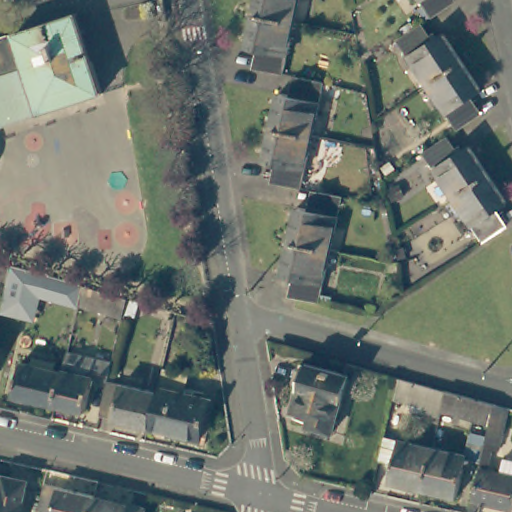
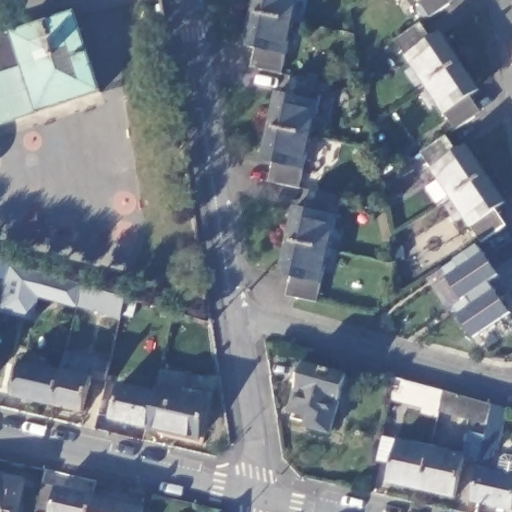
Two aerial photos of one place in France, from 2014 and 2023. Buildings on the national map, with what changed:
unchanged [(255,0),(297,0),(293,22),(253,13),(255,0)]
unchanged [(416,0),(445,0),(449,5),(428,19),(416,0)]
unchanged [(261,52),(246,49),(253,13),(293,22),(281,75),(258,70),(261,52)]
unchanged [(0,129),(0,40),(75,16),(101,95),(0,129)]
unchanged [(394,41),(414,28),(425,44),(440,34),(460,64),(425,87),(394,41)]
unchanged [(425,87),(460,64),(477,90),(462,100),(473,118),(455,131),(425,87)]
unchanged [(277,95),(294,99),(298,79),(322,84),(311,137),(270,129),(277,95)]
unchanged [(280,167),(262,162),(270,129),(311,137),(300,190),(277,185),(280,167)]
unchanged [(451,200),(420,155),(440,141),(451,158),(466,147),(486,177),(451,200)]
unchanged [(480,244),(451,200),(486,177),(505,205),(490,215),(500,231),(480,244)]
unchanged [(288,241),(295,207),(312,211),(316,193),(339,198),(328,250),(288,241)]
unchanged [(294,297),(297,278),(281,275),(288,241),(328,250),(316,302),(294,297)]
new [(499,277),(490,283),(511,313),(474,338),(457,315),(471,306),(466,297),(461,299),(446,277),(459,268),(454,261),(477,245),(499,277)]
unchanged [(6,284),(0,282),(0,262),(10,265),(83,287),(126,300),(122,319),(78,306),(40,295),(35,309),(31,321),(0,312),(1,306),(6,284)]
unchanged [(67,353),(111,363),(111,364),(108,381),(108,382),(94,378),(86,413),(55,406),(56,398),(63,374),(63,373),(67,353)]
unchanged [(298,362),(300,360),(341,371),(326,430),(300,423),(303,412),(287,408),(293,382),(288,382),(294,361),(298,362)]
unchanged [(14,397),(21,363),(63,373),(63,374),(56,398),(55,406),(14,397)]
unchanged [(420,490),(430,448),(465,456),(471,432),(484,436),(487,423),(456,416),(455,420),(450,418),(451,415),(439,412),(438,416),(412,410),(413,404),(390,399),(395,378),(443,392),(490,405),(505,408),(497,442),(483,439),(481,450),(501,454),(504,440),(512,441),(512,502),(510,511),(479,503),(477,512),(466,512),(478,461),(464,458),(456,498),(420,490)]
unchanged [(99,417),(106,388),(107,384),(119,387),(155,396),(148,428),(111,420),(99,417)]
unchanged [(207,402),(199,440),(148,428),(155,396),(156,391),(207,402)]
unchanged [(387,482),(391,465),(376,462),(382,437),(396,440),(430,448),(420,490),(387,482)]
unchanged [(6,473),(30,478),(22,512),(0,512),(0,478),(5,480),(6,473)]
unchanged [(32,512),(38,487),(89,498),(86,512),(32,512)]
unchanged [(140,511),(139,512),(86,512),(89,498),(140,511)]

